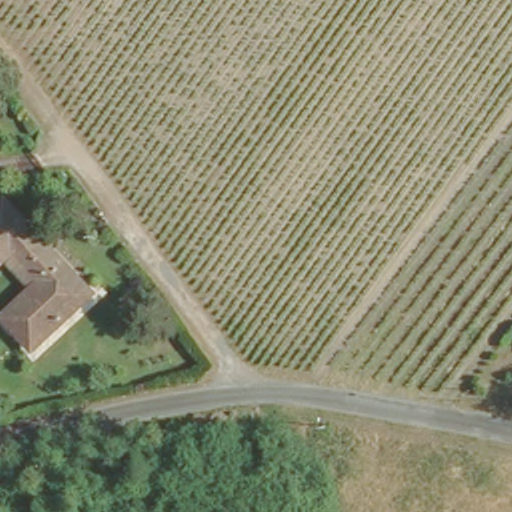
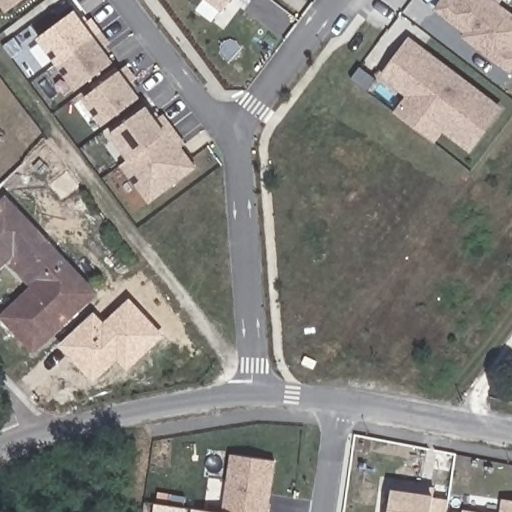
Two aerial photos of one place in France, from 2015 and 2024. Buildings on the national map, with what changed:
new [(0,6),(0,0),(21,0),(4,12),(0,6)]
new [(207,0),(230,0),(221,11),(207,0)]
new [(441,0),(494,0),(512,14),(512,68),(509,72),(462,37),(466,32),(434,10),(441,0)]
new [(112,61),(73,88),(36,39),(75,9),(85,23),(91,17),(109,42),(103,47),(112,61)]
new [(379,77),(409,37),(502,107),(470,152),(441,132),(435,142),(394,112),(405,95),(379,77)]
new [(130,84),(139,97),(101,126),(81,98),(120,70),(126,64),(136,79),(130,84)]
new [(186,143),(181,146),(196,167),(147,204),(119,166),(127,160),(108,134),(147,105),(157,120),(164,114),(186,143)]
unchanged [(340,197),(349,184),(360,192),(351,205),(340,197)]
unchanged [(96,282),(39,342),(8,312),(36,283),(4,251),(0,255),(0,204),(7,196),(96,282)]
new [(94,311),(104,322),(129,297),(164,335),(128,370),(117,359),(94,382),(59,345),(94,311)]
new [(192,507),(221,512),(230,453),(275,460),(268,512),(191,512),(192,507)]
new [(392,488),(394,481),(422,484),(421,491),(434,493),(434,497),(449,498),(447,512),(451,512),(390,512),(392,488)]
new [(502,497),(512,499),(512,512),(499,512),(502,497)]
new [(462,509),(482,512),(462,512),(462,509)]

